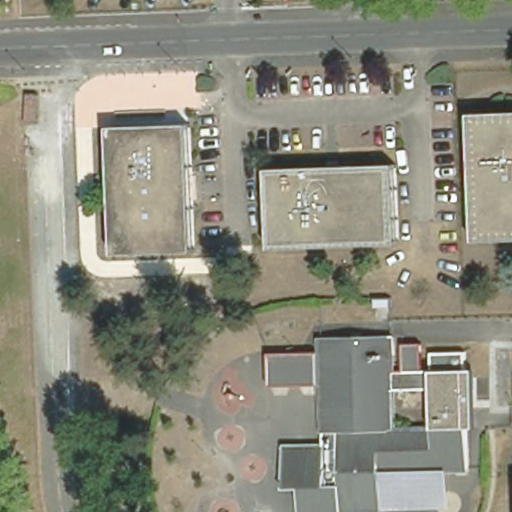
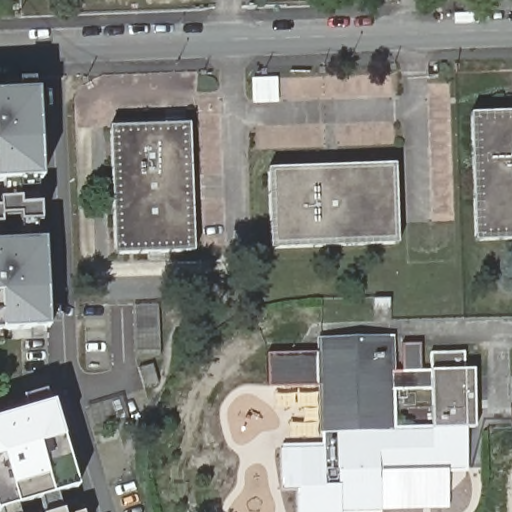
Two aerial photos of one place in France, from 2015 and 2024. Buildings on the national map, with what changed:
new [(0,93),(37,92),(41,179),(0,180),(0,93)]
unchanged [(468,113),(512,111),(512,239),(474,241),(468,113)]
unchanged [(113,255),(108,127),(188,124),(190,176),(191,200),(193,252),(113,255)]
unchanged [(394,164),(397,244),(269,249),(266,169),(394,164)]
new [(0,330),(0,241),(43,239),(49,327),(0,330)]
unchanged [(384,440),(423,439),(456,438),(457,479),(369,482),(370,512),(289,512),(288,498),(273,498),(272,458),(313,457),(311,389),(310,352),(310,349),(381,347),(382,374),(382,382),(382,400),(384,440)]
unchanged [(269,391),(268,352),(310,353),(311,389),(269,391)]
unchanged [(422,381),(421,363),(454,362),(455,380),(464,380),(465,438),(456,438),(423,439),(422,398),(382,400),(382,382),(422,381)]
new [(0,417),(53,402),(78,486),(0,509),(0,417)]
new [(370,510),(369,482),(450,479),(449,508),(370,510)]

